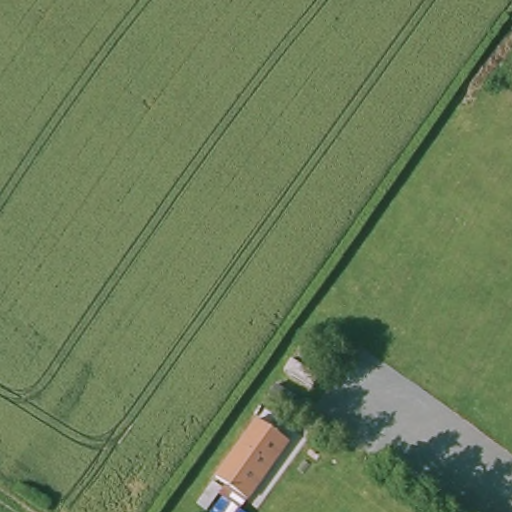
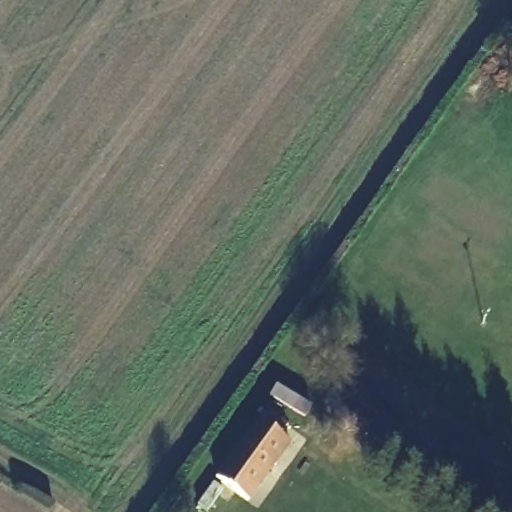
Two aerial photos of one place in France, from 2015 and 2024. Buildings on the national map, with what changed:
unchanged [(298,443),(249,508),(226,491),(211,512),(200,512),(195,508),(252,422),(298,443)]

